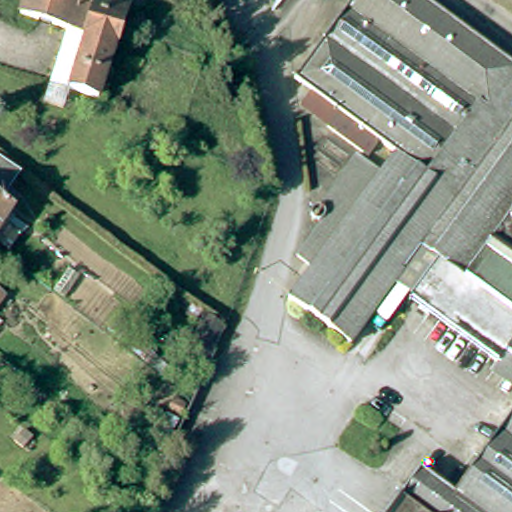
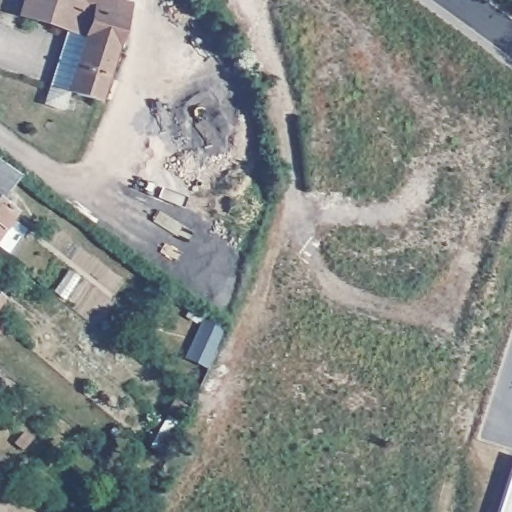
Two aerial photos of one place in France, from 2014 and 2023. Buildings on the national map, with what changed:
unchanged [(59,114),(54,112),(51,111),(56,96),(62,77),(63,72),(73,39),(26,25),(34,0),(114,0),(111,8),(132,16),(107,95),(102,110),(73,101),(68,117),(59,114)]
demolished [(316,271),(300,260),(332,216),(335,213),(340,217),(366,182),(376,189),(380,184),(386,176),(399,157),(383,146),(373,160),(331,129),(342,115),(315,95),(297,83),(357,0),(422,0),(512,65),(512,369),(506,364),(503,369),(415,303),(445,262),(428,250),(424,255),(435,263),(425,277),(413,269),(354,348),(293,303),(316,271)]
unchanged [(18,186),(7,201),(9,202),(0,214),(0,172),(18,186)]
unchanged [(11,223),(0,239),(0,215),(11,223)]
unchanged [(3,300),(0,304),(0,298),(3,300)]
unchanged [(201,368),(182,353),(207,318),(220,327),(201,368)]
demolished [(458,498),(512,426),(512,512),(396,512),(424,472),(458,498)]
new [(512,512),(499,512),(512,470),(512,512)]

